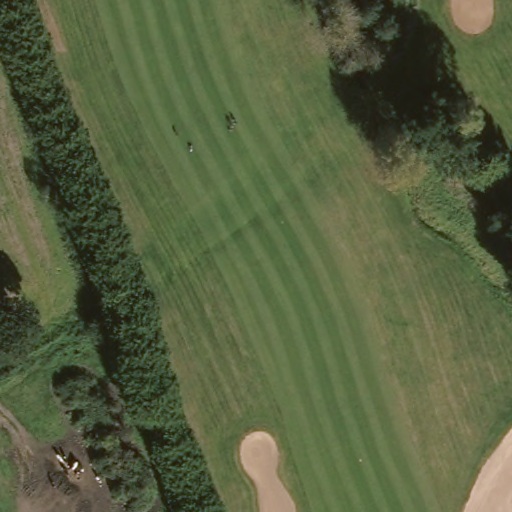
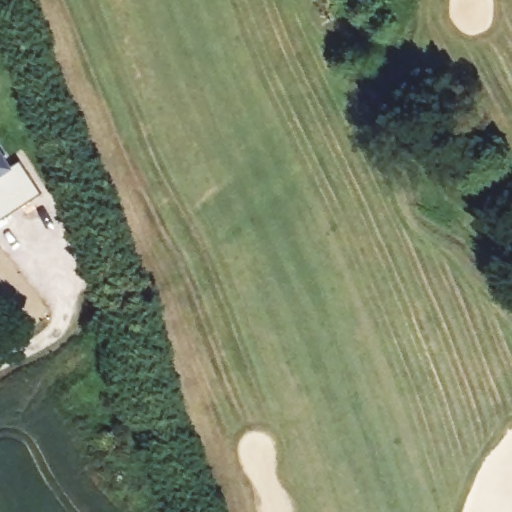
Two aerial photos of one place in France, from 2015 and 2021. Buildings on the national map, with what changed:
new [(2,154),(9,165),(18,159),(40,192),(0,218),(0,149),(2,154)]

